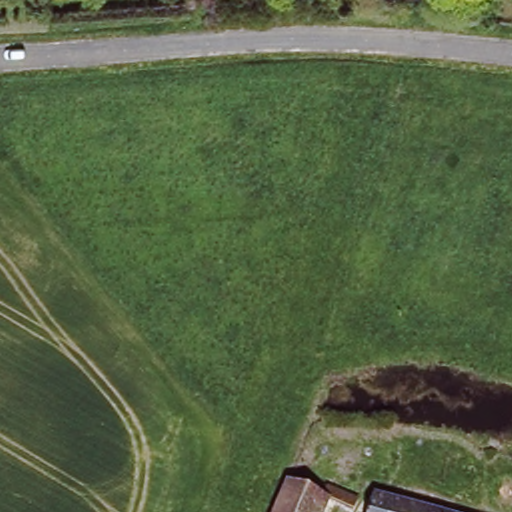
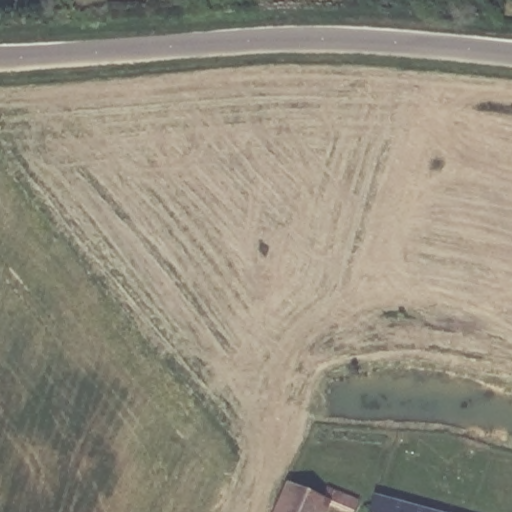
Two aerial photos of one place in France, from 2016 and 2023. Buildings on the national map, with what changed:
unchanged [(281,484),(319,498),(322,489),(351,499),(346,512),(345,512),(326,506),(323,512),(270,512),(281,484)]
unchanged [(428,512),(365,512),(369,496),(428,512)]

